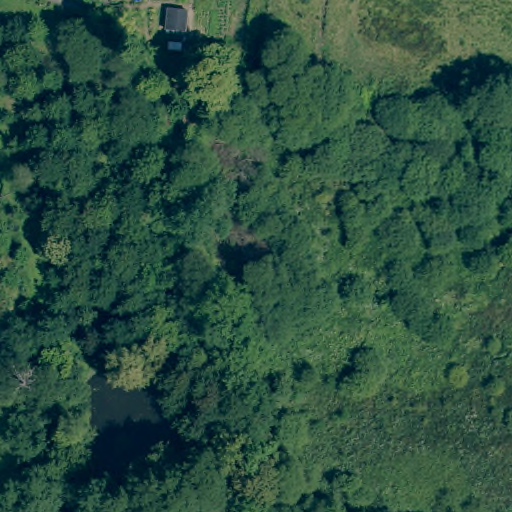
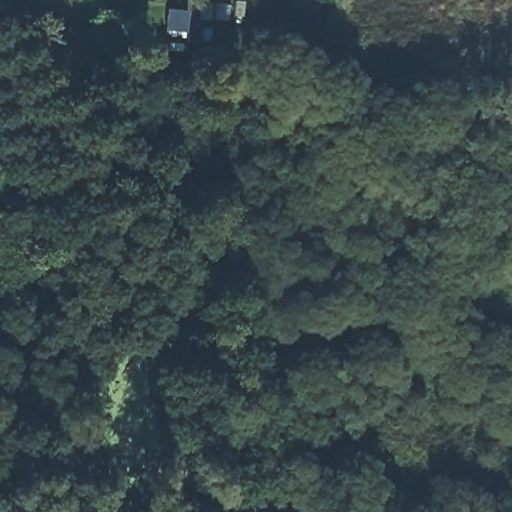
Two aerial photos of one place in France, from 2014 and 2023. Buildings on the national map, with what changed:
unchanged [(181,34),(178,34),(161,32),(164,12),(176,14),(183,14),(181,34)]

